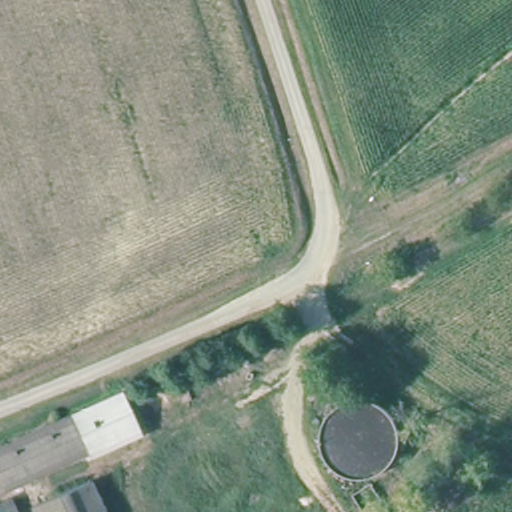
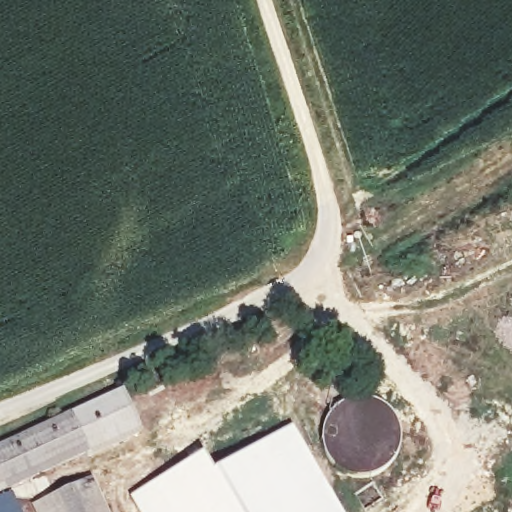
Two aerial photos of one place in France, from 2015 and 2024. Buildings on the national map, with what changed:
new [(123,389),(144,435),(91,459),(84,448),(70,416),(123,389)]
unchanged [(68,413),(84,448),(0,487),(0,447),(68,413)]
new [(203,454),(213,471),(292,426),(341,512),(137,512),(129,498),(203,454)]
unchanged [(109,512),(40,512),(37,505),(46,501),(95,480),(109,512)]
unchanged [(15,498),(21,512),(0,512),(0,504),(15,498)]

